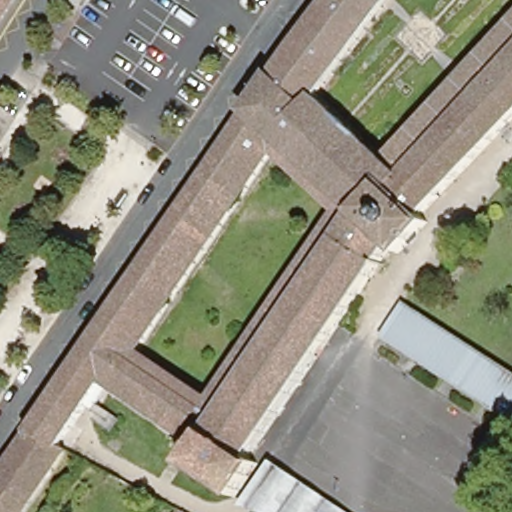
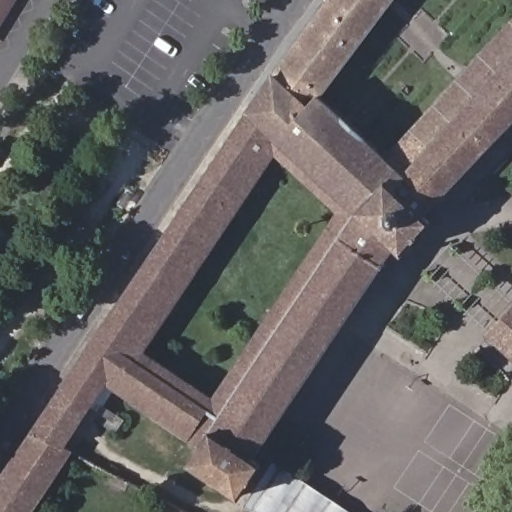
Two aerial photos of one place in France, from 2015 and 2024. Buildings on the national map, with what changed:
unchanged [(0,0),(16,0),(0,26),(0,0)]
unchanged [(430,209),(436,216),(408,250),(400,243),(259,450),(266,455),(242,491),(194,458),(205,441),(110,381),(69,449),(35,431),(138,276),(242,121),(297,40),(326,0),(388,0),(322,86),(388,152),(512,13),(512,115),(430,209)]
demolished [(403,301),(512,370),(512,420),(385,340),(403,301)]
new [(512,305),(512,362),(482,335),(512,305)]
unchanged [(56,483),(18,457),(35,431),(69,449),(76,453),(56,483)]
unchanged [(0,482),(18,457),(56,483),(36,512),(4,512),(0,509),(0,482)]
unchanged [(346,512),(261,512),(247,507),(275,463),(346,512)]
unchanged [(0,509),(4,512),(0,512),(0,509)]

